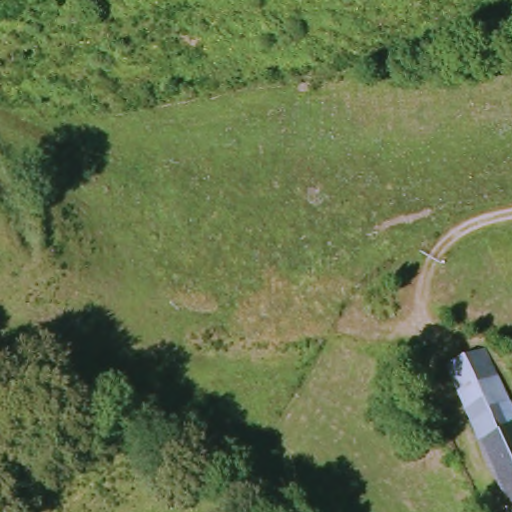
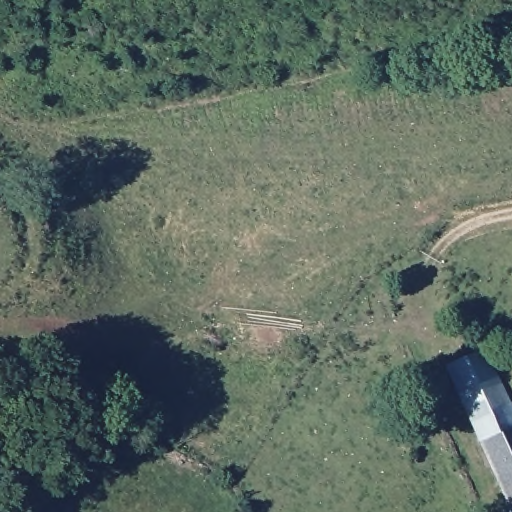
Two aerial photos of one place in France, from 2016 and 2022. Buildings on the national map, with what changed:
unchanged [(512,414),(512,512),(509,512),(442,362),(481,346),(512,414)]

